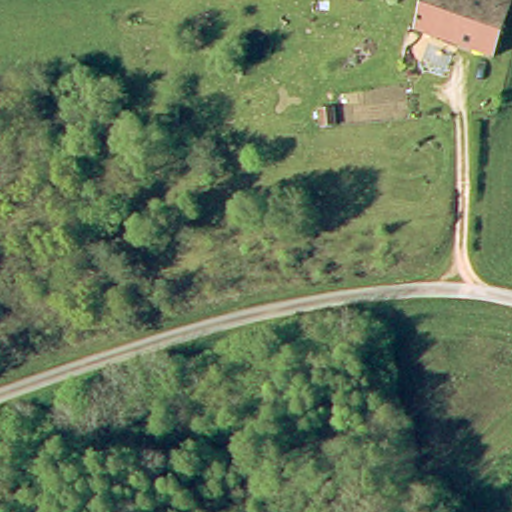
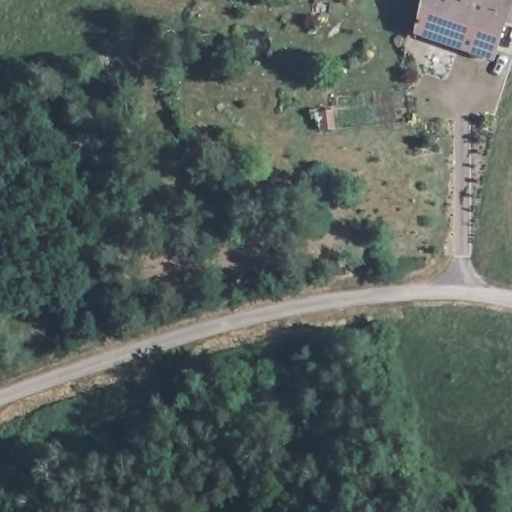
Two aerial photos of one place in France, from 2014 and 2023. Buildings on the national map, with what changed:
unchanged [(415,40),(426,5),(443,10),(446,0),(512,0),(512,5),(491,64),(415,40)]

